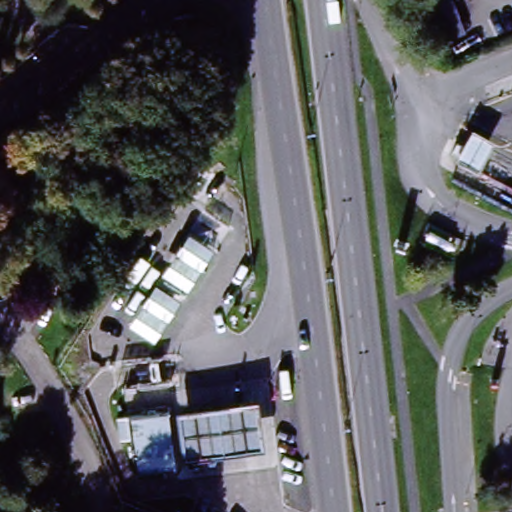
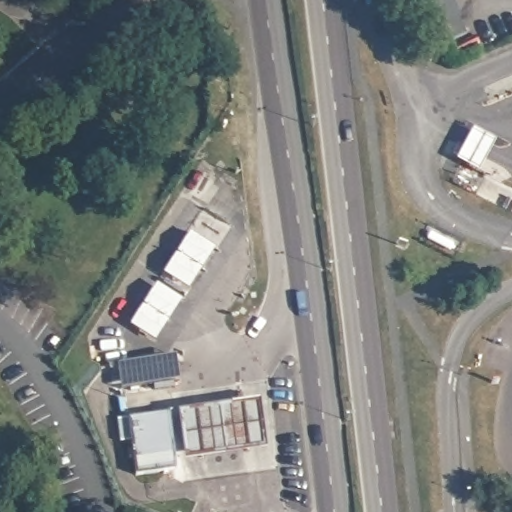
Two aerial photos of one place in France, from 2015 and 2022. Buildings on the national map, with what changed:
unchanged [(428,0),(451,0),(466,35),(446,43),(428,0)]
unchanged [(197,19),(198,33),(175,36),(173,21),(197,19)]
unchanged [(495,140),(477,172),(455,159),(473,128),(495,140)]
unchanged [(131,326),(190,233),(215,248),(155,343),(131,326)]
new [(121,390),(117,364),(176,356),(180,382),(121,390)]
unchanged [(184,459),(178,411),(258,402),(266,449),(184,459)]
unchanged [(128,417),(166,413),(172,472),(132,474),(129,444),(111,444),(112,419),(128,417)]

